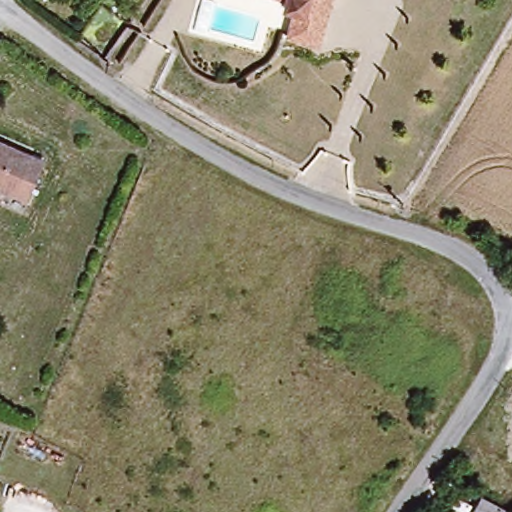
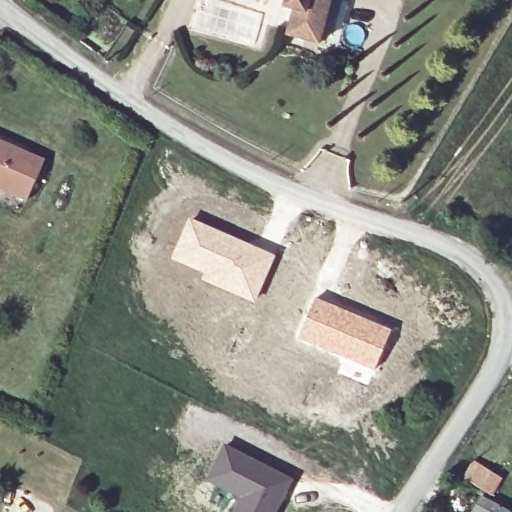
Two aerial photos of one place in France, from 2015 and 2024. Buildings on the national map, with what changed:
unchanged [(334,0),(320,47),(288,37),(295,9),(286,7),(288,0),(334,0)]
unchanged [(49,158),(33,195),(0,182),(0,137),(49,158)]
new [(190,217),(275,254),(255,302),(200,279),(203,273),(170,258),(190,217)]
new [(316,297),(392,329),(374,370),(298,339),(316,297)]
new [(223,442),(294,478),(277,512),(232,512),(238,499),(204,480),(223,442)]
unchanged [(469,508),(477,491),(506,504),(503,512),(468,512),(469,508)]

